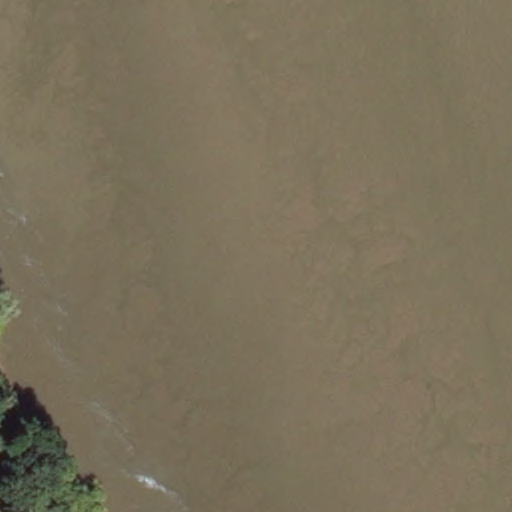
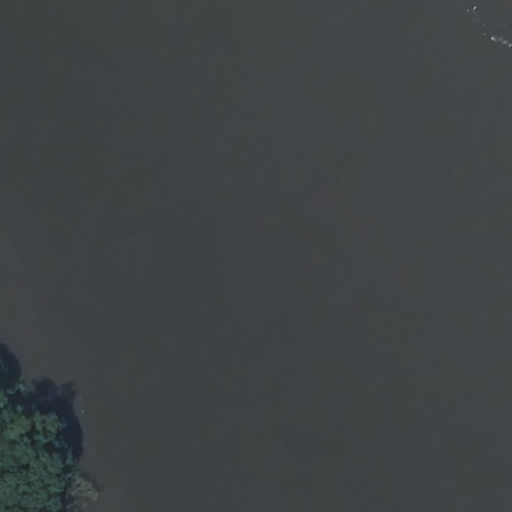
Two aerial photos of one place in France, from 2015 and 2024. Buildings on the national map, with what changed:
[]

